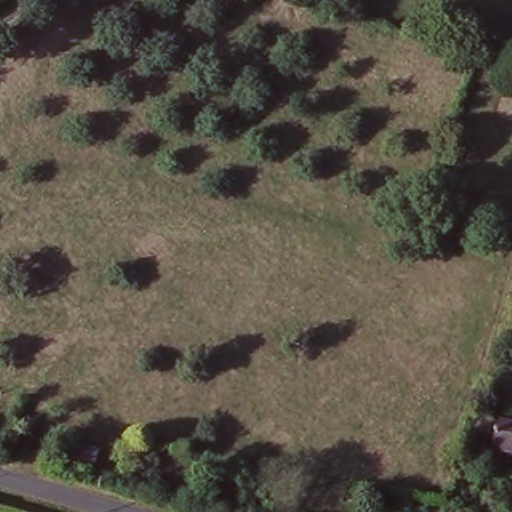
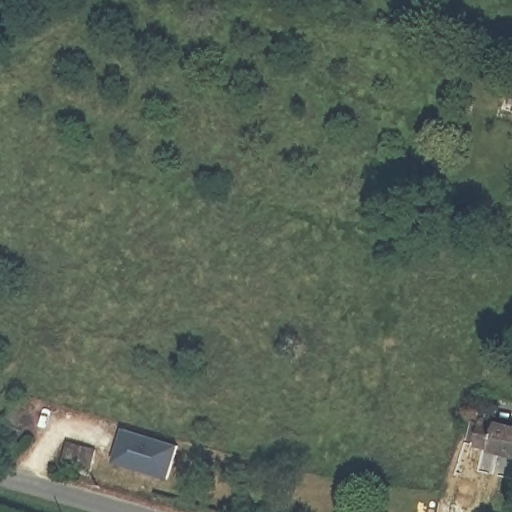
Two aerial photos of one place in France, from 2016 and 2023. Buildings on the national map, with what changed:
unchanged [(488,418),(512,424),(512,453),(480,444),(488,418)]
new [(179,447),(171,480),(114,461),(124,430),(179,447)]
unchanged [(100,451),(94,478),(65,471),(73,445),(100,451)]

